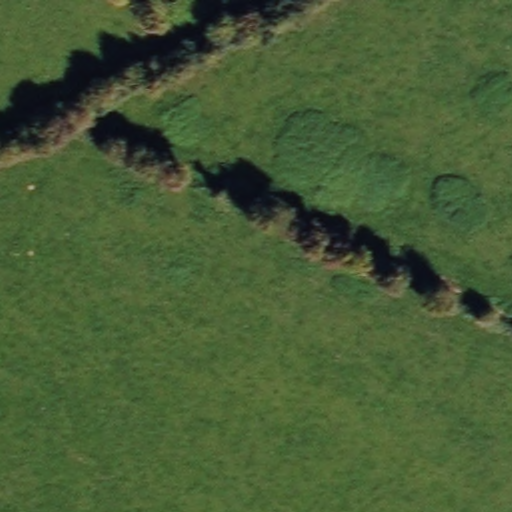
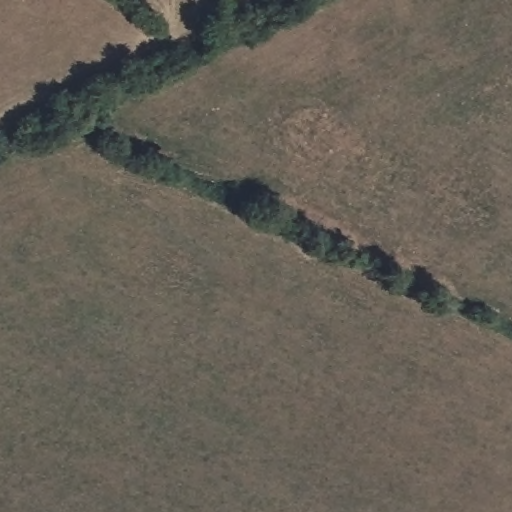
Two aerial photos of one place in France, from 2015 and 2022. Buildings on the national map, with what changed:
[]

